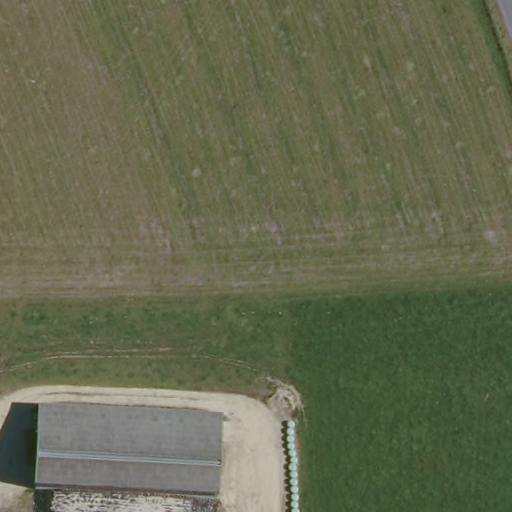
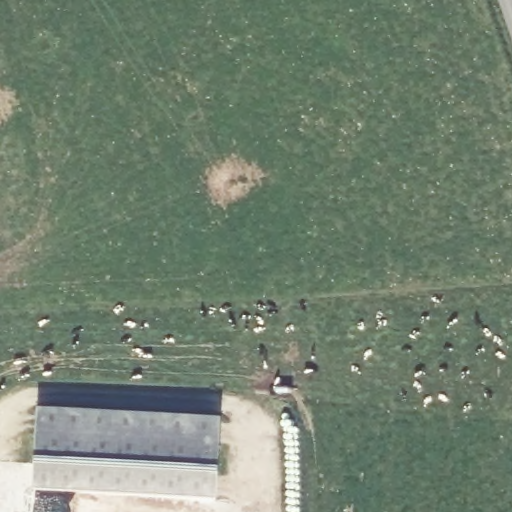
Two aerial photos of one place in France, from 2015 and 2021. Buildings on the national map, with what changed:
unchanged [(35,412),(216,421),(214,502),(29,495),(35,412)]

